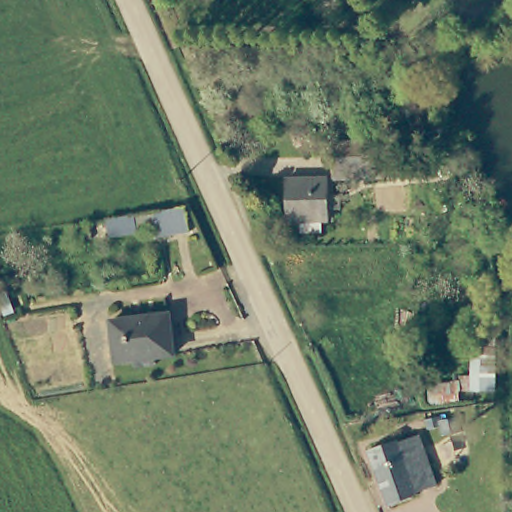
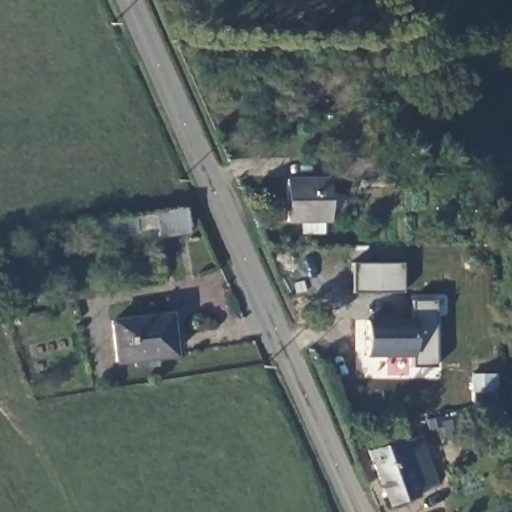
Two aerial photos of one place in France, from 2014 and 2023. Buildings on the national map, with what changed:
unchanged [(351,177),(351,154),(352,139),(391,142),(391,154),(391,178),(351,177)]
unchanged [(295,232),(296,221),(284,220),(285,181),(327,182),(326,222),(318,222),(317,232),(295,232)]
unchanged [(109,221),(135,216),(182,210),(187,234),(155,240),(153,230),(139,233),(111,238),(109,221)]
new [(402,293),(354,293),(353,264),(405,264),(402,293)]
new [(435,365),(412,366),(413,357),(362,356),(363,315),(412,316),(411,301),(435,301),(435,365)]
unchanged [(180,352),(124,362),(116,321),(171,311),(180,352)]
demolished [(498,345),(496,397),(475,395),(473,344),(498,345)]
unchanged [(410,435),(417,454),(421,452),(433,484),(415,492),(415,494),(386,505),(365,451),(410,435)]

